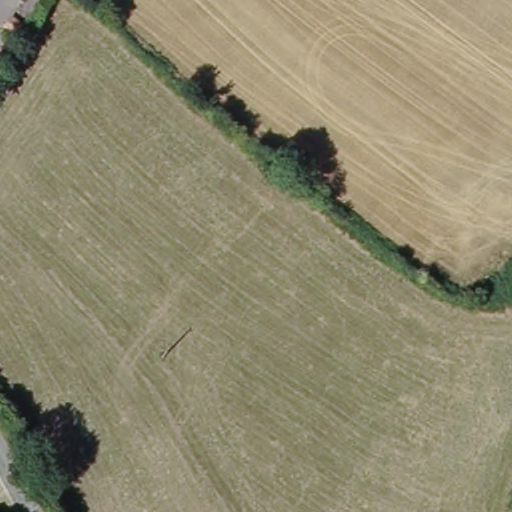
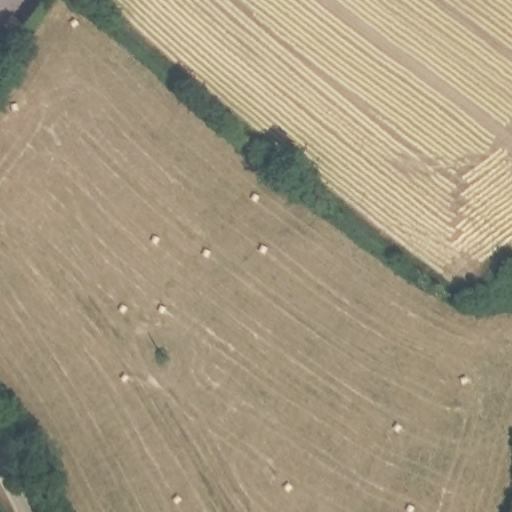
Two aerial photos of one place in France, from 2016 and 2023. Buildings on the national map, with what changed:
unchanged [(29,1),(29,0),(30,0),(29,1)]

